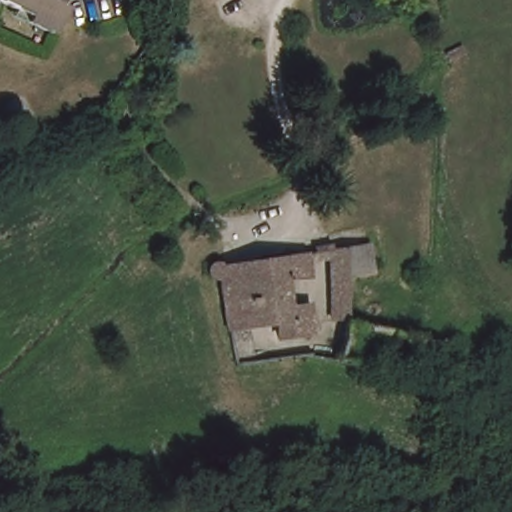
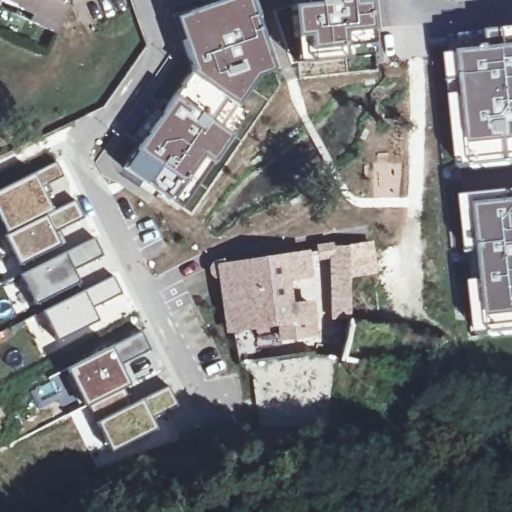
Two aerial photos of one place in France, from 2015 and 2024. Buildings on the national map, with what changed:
unchanged [(60,4),(68,8),(59,28),(52,25),(48,33),(29,23),(32,16),(0,0),(63,0),(60,4)]
new [(137,149),(192,71),(176,18),(225,0),(250,0),(272,71),(255,77),(237,103),(227,96),(212,120),(232,135),(214,161),(202,154),(182,182),(172,197),(125,165),(137,149)]
new [(369,1),(371,26),(372,40),(375,54),(345,56),(299,60),(295,33),(292,6),(291,0),(368,0),(369,1)]
new [(494,53),(492,34),(512,33),(512,334),(480,337),(473,283),(487,282),(486,253),(470,254),(463,197),(482,196),(480,169),(463,172),(450,57),(494,53)]
new [(56,231),(60,241),(18,263),(4,234),(0,224),(0,190),(55,162),(62,176),(42,187),(52,210),(75,199),(82,219),(56,231)]
new [(34,303),(18,273),(63,250),(94,237),(102,254),(73,268),(79,281),(34,303)]
unchanged [(327,245),(342,243),(347,242),(351,290),(352,313),(332,315),(327,245)]
unchanged [(287,306),(309,305),(312,334),(280,338),(277,319),(230,326),(229,326),(220,278),(212,273),(210,268),(212,265),(219,263),(227,267),(305,253),(307,275),(282,275),(287,306)]
new [(57,341),(40,310),(82,289),(113,275),(122,295),(94,308),(100,321),(57,341)]
new [(152,417),(157,427),(111,449),(96,420),(87,404),(65,368),(110,345),(141,330),(152,350),(122,365),(132,384),(124,387),(131,403),(167,386),(177,404),(152,417)]

